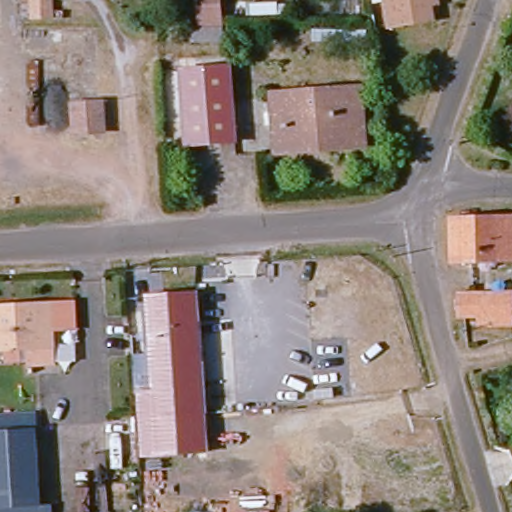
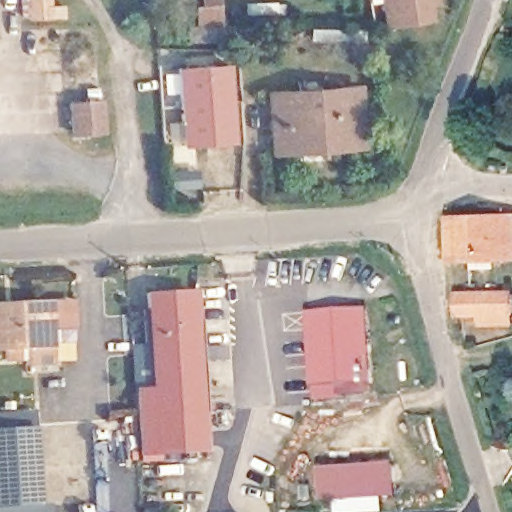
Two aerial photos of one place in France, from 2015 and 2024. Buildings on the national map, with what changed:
unchanged [(51,17),(30,17),(30,0),(51,0),(51,17)]
unchanged [(189,42),(189,26),(200,26),(198,9),(204,7),(204,0),(224,0),(225,26),(222,26),(223,43),(189,42)]
unchanged [(389,26),(385,0),(436,0),(437,3),(429,4),(432,19),(389,26)]
unchanged [(276,13),(253,14),(253,4),(275,4),(276,13)]
unchanged [(239,141),(191,145),(185,70),(185,59),(192,58),(193,70),(234,66),(239,141)]
unchanged [(191,145),(170,146),(165,71),(185,70),(191,145)]
unchanged [(300,155),(276,157),(275,131),(263,132),(262,117),(273,116),(272,100),(359,94),(363,143),(364,151),(300,155)]
unchanged [(104,131),(74,133),(72,104),(101,102),(104,131)]
unchanged [(455,218),(512,217),(512,260),(456,261),(451,261),(450,219),(455,218)]
unchanged [(148,299),(191,296),(194,346),(151,349),(148,299)]
unchanged [(483,320),(464,321),(463,299),(512,299),(512,329),(483,330),(483,320)]
unchanged [(41,364),(39,364),(29,365),(28,348),(18,348),(19,360),(6,361),(5,349),(0,350),(0,307),(6,306),(26,305),(73,303),(74,328),(51,329),(53,346),(52,346),(53,363),(41,364)]
new [(315,400),(309,314),(368,310),(373,396),(315,400)]
unchanged [(202,457),(140,460),(136,396),(154,395),(151,349),(194,346),(202,457)]
unchanged [(38,503),(37,503),(0,506),(0,416),(30,414),(32,431),(33,430),(38,503)]
new [(321,503),(319,471),(395,464),(398,496),(321,503)]
unchanged [(0,512),(0,506),(37,503),(37,512),(0,512)]

